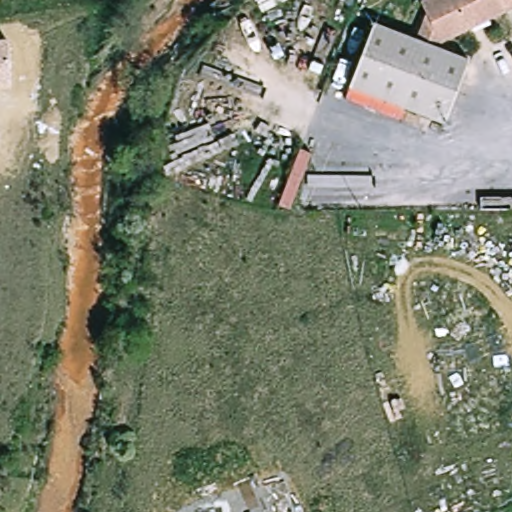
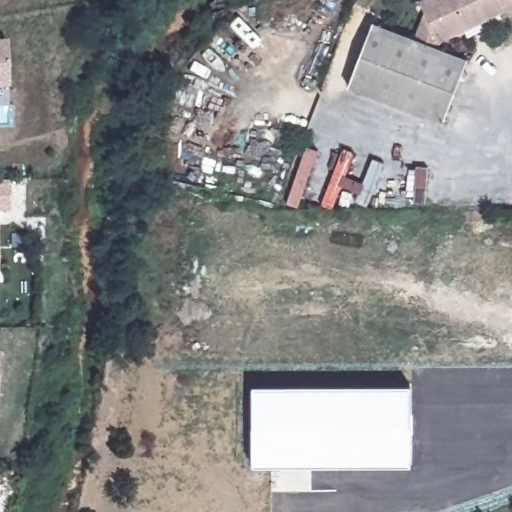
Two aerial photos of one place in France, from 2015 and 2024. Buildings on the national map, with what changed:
unchanged [(437,48),(438,49),(415,40),(415,39),(416,39),(427,13),(421,1),(423,0),(512,0),(512,8),(502,13),(472,26),(440,41),(437,48)]
unchanged [(415,39),(415,40),(438,49),(467,61),(441,123),(348,83),(375,21),(415,39)]
unchanged [(7,40),(8,88),(0,88),(0,40),(7,40)]
new [(373,160),(384,164),(368,207),(357,202),(360,195),(342,188),(334,210),(321,205),(342,150),(355,155),(346,177),(364,184),(373,160)]
new [(253,467),(253,387),(411,387),(410,466),(253,467)]

